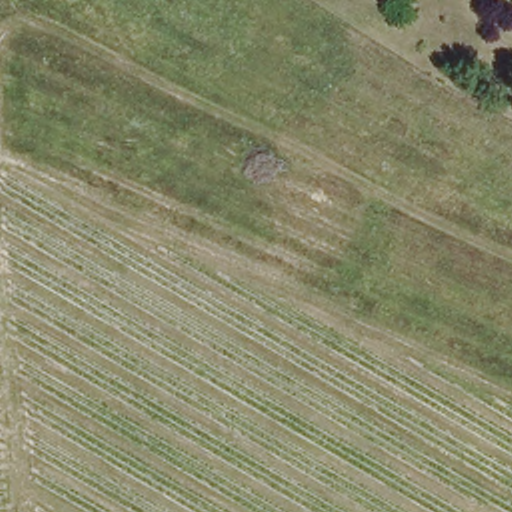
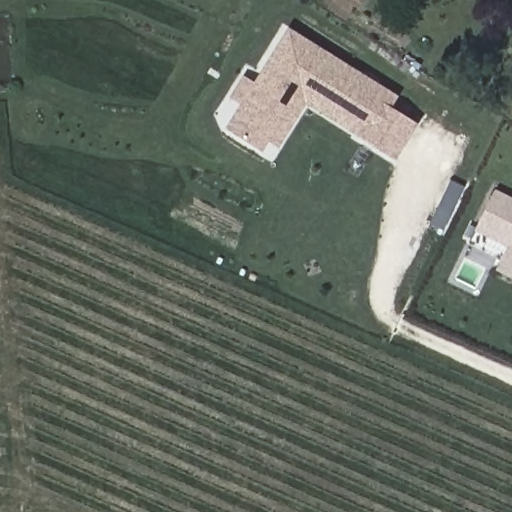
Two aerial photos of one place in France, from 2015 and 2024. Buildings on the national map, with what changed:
new [(289,28),(399,97),(391,107),(419,124),(396,159),(360,135),(307,102),(280,147),(271,141),(264,152),(227,128),(242,104),(230,97),(245,75),(254,82),(289,28)]
new [(445,229),(432,223),(450,183),(463,189),(445,229)]
new [(506,247),(474,232),(495,189),(512,198),(512,278),(497,270),(506,247)]

